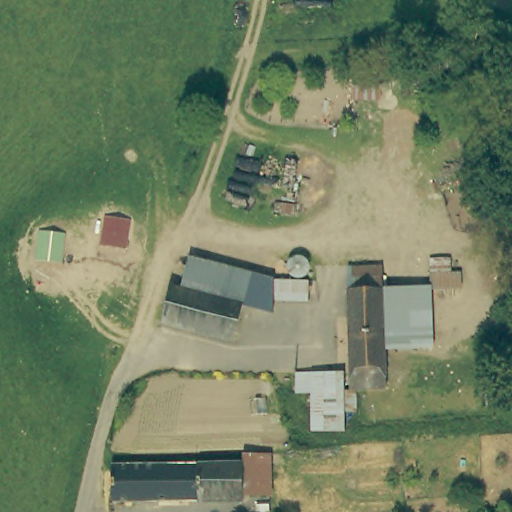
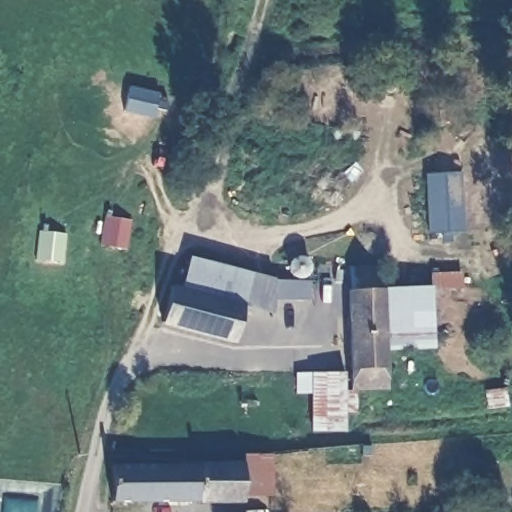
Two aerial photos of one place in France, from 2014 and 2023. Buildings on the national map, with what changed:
new [(429,233),(426,174),(462,171),(467,230),(429,233)]
unchanged [(172,286),(184,288),(191,258),(276,281),(277,276),(289,277),(309,278),(309,298),(273,297),(270,313),(242,305),(235,341),(165,321),(172,286)]
unchanged [(463,286),(434,287),(433,275),(433,258),(454,258),(454,275),(463,275),(463,286)]
unchanged [(348,270),(383,270),(384,290),(430,287),(433,348),(386,350),(388,393),(356,392),(348,392),(348,291),(348,270)]
unchanged [(348,392),(356,392),(356,415),(343,415),(344,433),(311,435),(310,393),(297,393),(297,375),(342,374),(343,392),(348,392)]
unchanged [(247,455),(285,454),(285,480),(275,480),(275,497),(247,497),(247,501),(117,505),(116,469),(247,463),(247,455)]

